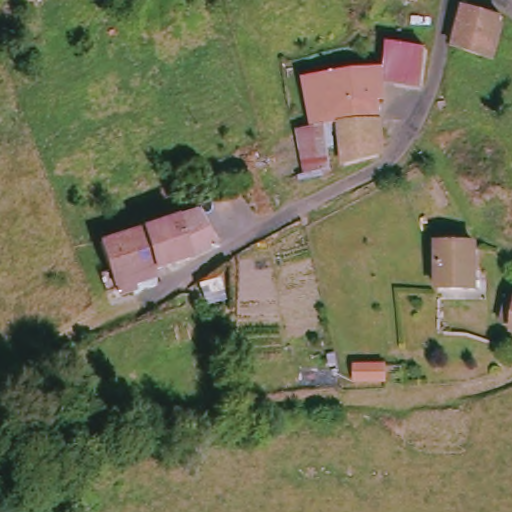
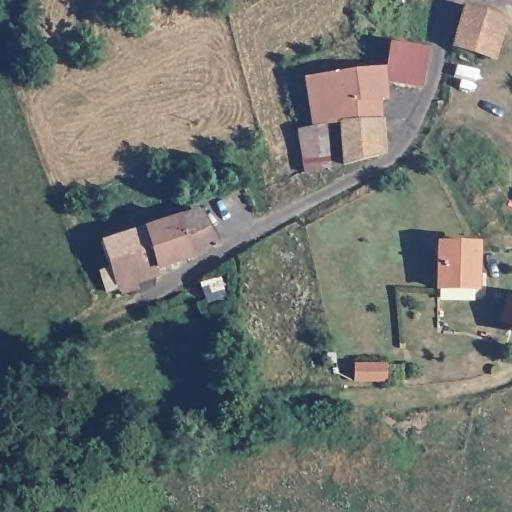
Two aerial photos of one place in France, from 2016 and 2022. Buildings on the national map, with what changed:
unchanged [(274,0),(245,6),(243,0),(274,0)]
unchanged [(415,2),(399,0),(415,0),(415,2)]
unchanged [(502,32),(478,63),(448,34),(472,0),(502,32)]
unchanged [(367,109),(369,115),(324,132),(322,122),(304,122),(294,91),(341,77),(380,70),(377,48),(435,44),(427,81),(371,85),(378,104),(367,109)]
unchanged [(331,154),(324,132),(369,115),(380,149),(337,171),(331,154)]
unchanged [(305,128),(304,122),(322,122),(324,132),(331,154),(326,155),(327,171),(298,172),(294,129),(305,128)]
unchanged [(175,225),(200,215),(215,251),(191,263),(175,225)]
unchanged [(175,225),(191,263),(115,288),(99,247),(175,225)]
unchanged [(474,271),(474,291),(432,291),(431,249),(474,248),(474,271)]

